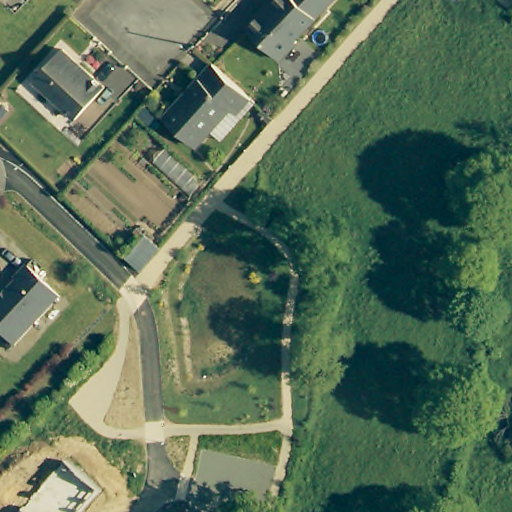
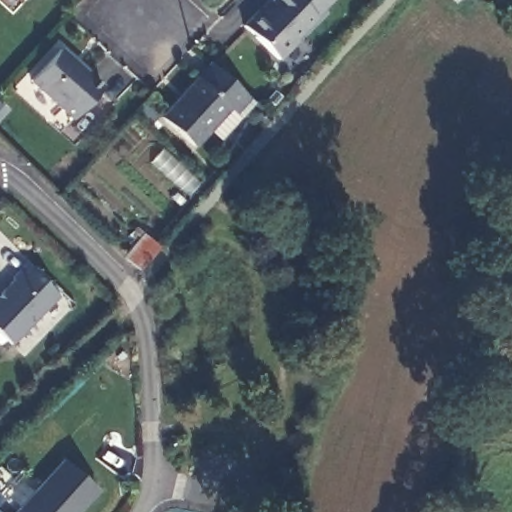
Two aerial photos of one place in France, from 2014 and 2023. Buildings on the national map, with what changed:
unchanged [(236,27),(252,10),(258,14),(264,6),(262,5),(267,0),(323,0),(287,37),(291,40),(272,56),(236,27)]
unchanged [(460,2),(457,0),(462,0),(460,2)]
unchanged [(37,85),(66,50),(107,91),(80,122),(37,85)]
unchanged [(221,137),(209,127),(195,145),(162,116),(209,61),(252,97),(238,113),(241,115),(221,137)]
unchanged [(122,255),(137,239),(143,232),(158,245),(152,252),(137,268),(122,255)]
unchanged [(7,339),(0,332),(0,286),(12,275),(10,273),(22,261),(54,292),(7,339)]
new [(92,486),(69,512),(10,512),(59,456),(92,486)]
new [(3,498),(0,502),(0,496),(3,498)]

